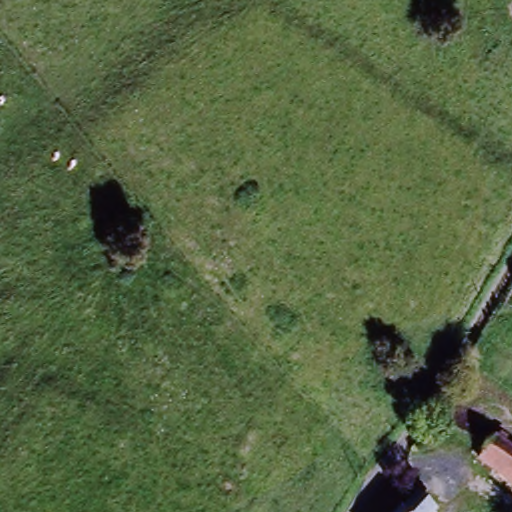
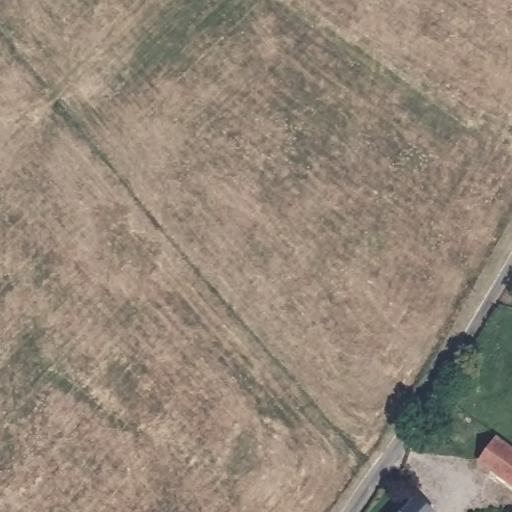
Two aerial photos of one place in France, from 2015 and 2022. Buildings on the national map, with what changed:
unchanged [(496,440),(512,451),(512,483),(482,461),(496,440)]
unchanged [(444,512),(410,512),(449,471),(467,489),(444,512)]

